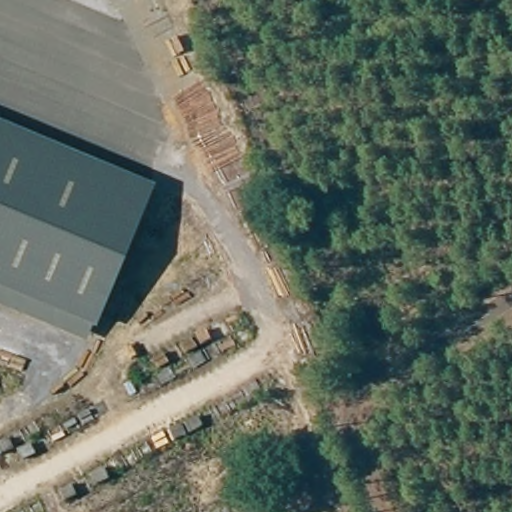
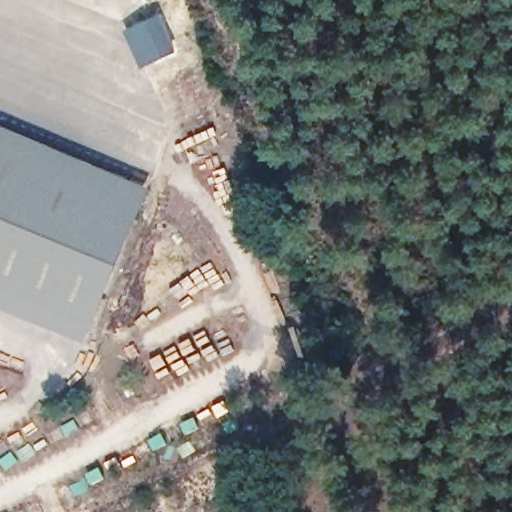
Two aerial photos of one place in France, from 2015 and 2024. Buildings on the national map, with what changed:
new [(143,68),(126,31),(161,16),(177,52),(143,68)]
unchanged [(140,197),(86,327),(0,292),(0,140),(140,197)]

